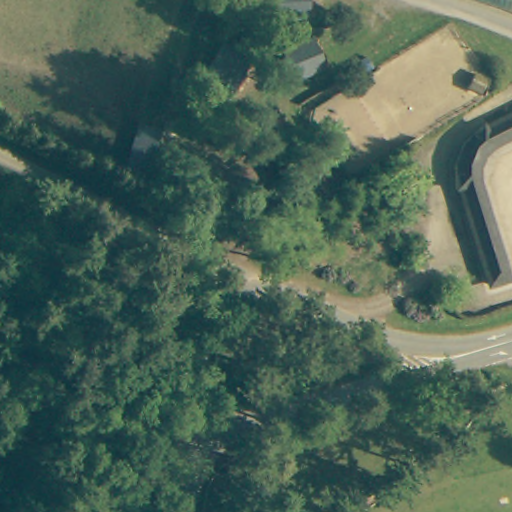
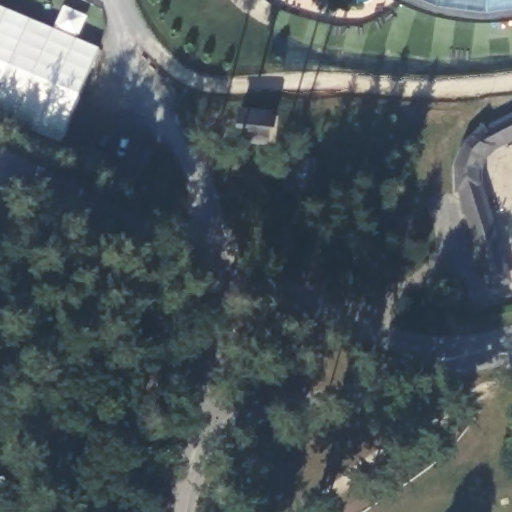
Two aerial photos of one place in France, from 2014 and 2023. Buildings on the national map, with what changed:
new [(483,22),(436,16),(398,0),(512,0),(512,18),(483,22)]
new [(60,146),(0,120),(0,5),(101,46),(60,146)]
unchanged [(504,137),(486,148),(482,158),(480,171),(485,193),(510,281),(485,290),(453,179),(453,166),(457,152),(464,138),(472,127),(484,120),(512,104),(512,133),(504,137)]
new [(240,112),(265,114),(263,143),(239,141),(240,112)]

